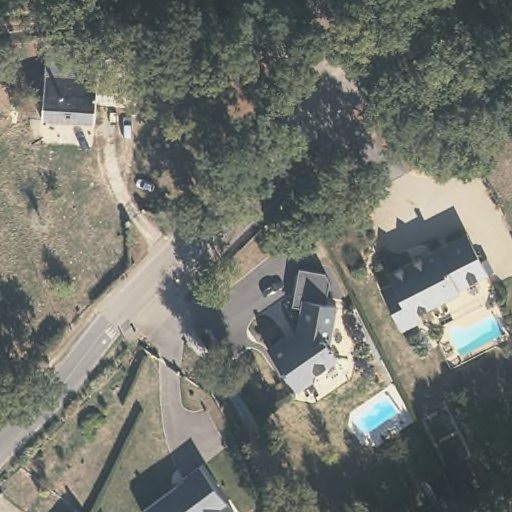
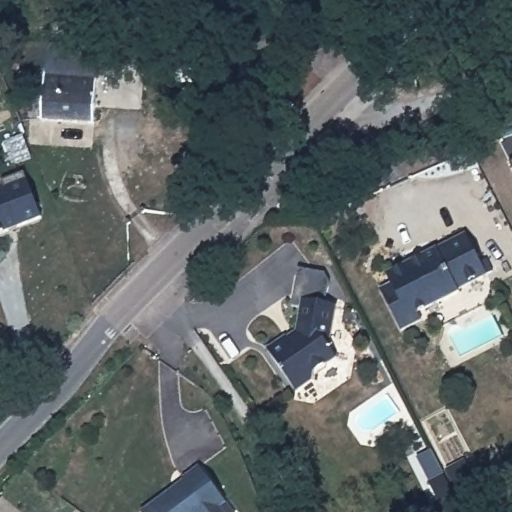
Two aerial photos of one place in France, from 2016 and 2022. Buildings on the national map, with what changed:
unchanged [(100,74),(97,124),(40,118),(43,69),(100,74)]
new [(510,161),(512,161),(512,165),(510,161)]
new [(4,179),(26,171),(43,217),(0,233),(0,190),(6,188),(4,179)]
unchanged [(475,256),(481,253),(487,265),(481,268),(451,284),(452,287),(411,307),(415,314),(395,324),(376,287),(385,283),(380,272),(463,230),(475,256)]
unchanged [(335,306),(328,349),(336,360),(315,374),(315,379),(308,378),(291,389),(265,347),(281,335),(285,339),(292,334),(300,298),(335,306)]
unchanged [(145,510),(189,479),(187,477),(204,466),(230,503),(223,507),(227,512),(146,512),(145,510)]
unchanged [(445,489),(432,495),(422,477),(436,469),(445,489)]

